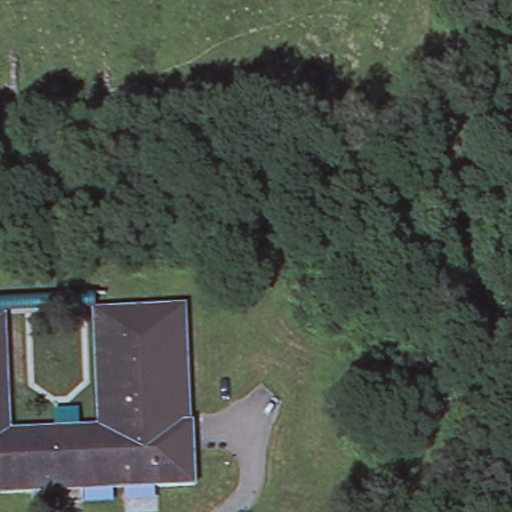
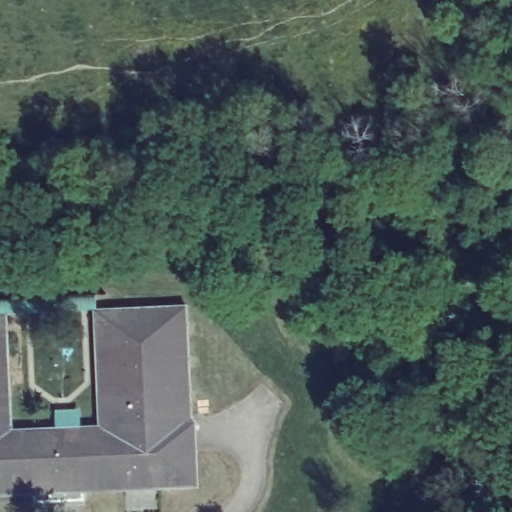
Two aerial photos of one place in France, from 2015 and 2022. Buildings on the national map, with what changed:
unchanged [(35,485),(0,487),(0,307),(7,307),(12,424),(101,420),(96,304),(188,299),(193,414),(197,414),(199,479),(190,479),(85,483),(85,493),(35,494),(35,485)]

